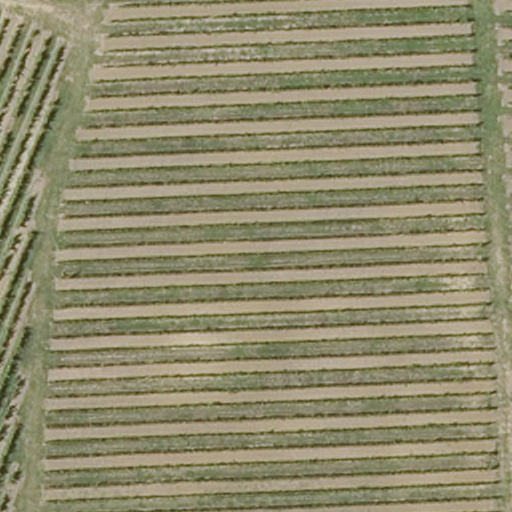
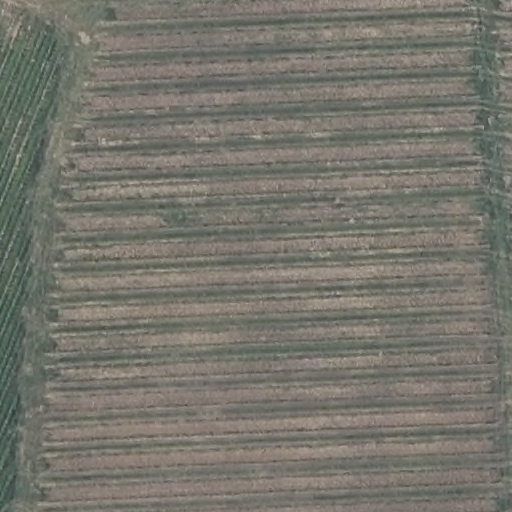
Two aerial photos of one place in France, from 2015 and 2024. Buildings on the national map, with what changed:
[]

